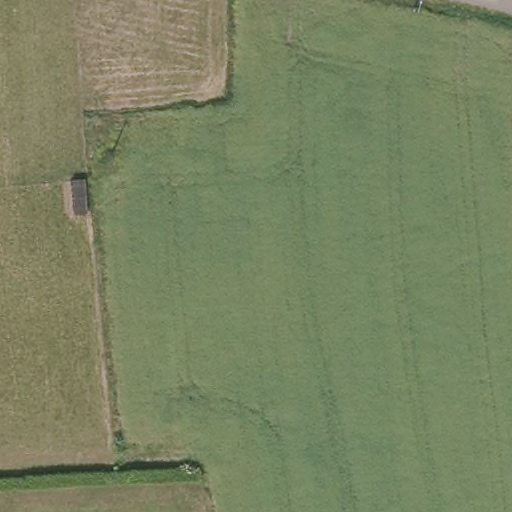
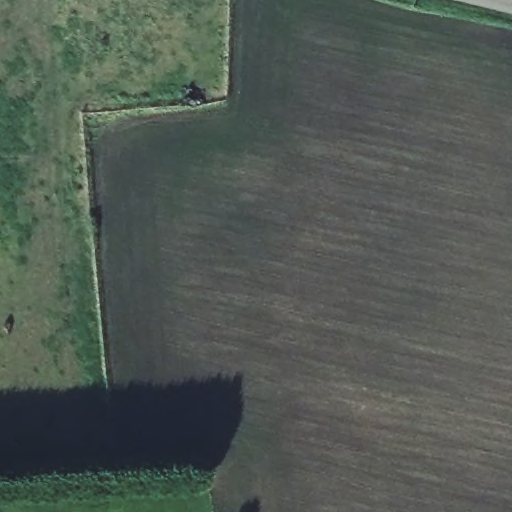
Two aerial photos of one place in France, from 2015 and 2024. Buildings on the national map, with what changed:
[]

